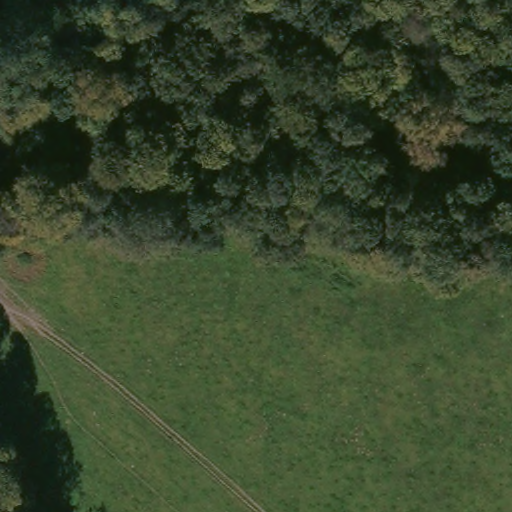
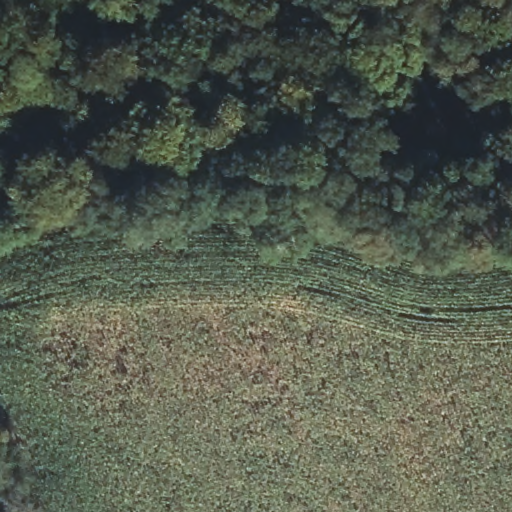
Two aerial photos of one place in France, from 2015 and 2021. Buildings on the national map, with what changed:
[]

